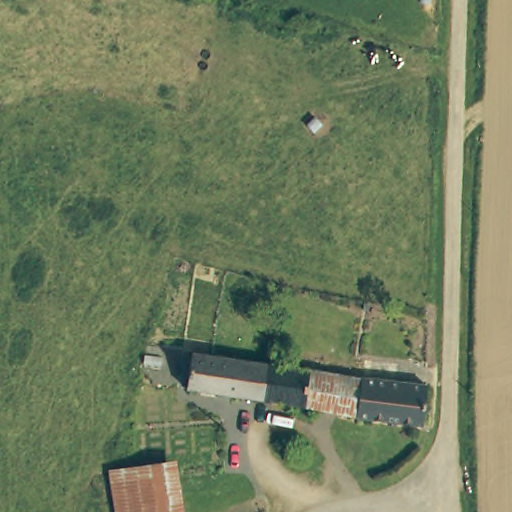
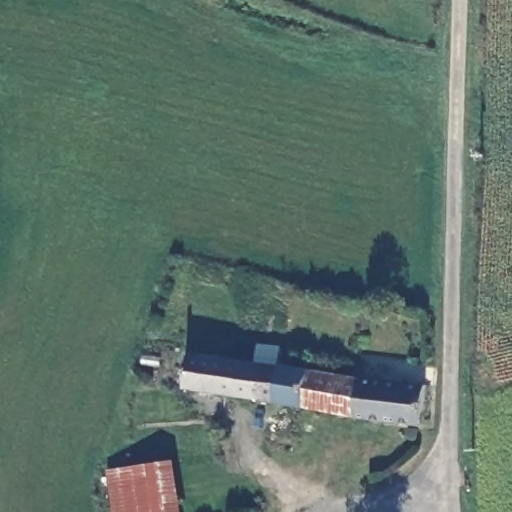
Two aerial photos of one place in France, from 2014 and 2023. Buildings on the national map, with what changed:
unchanged [(173,387),(178,350),(266,361),(260,400),(173,387)]
unchanged [(432,385),(428,425),(260,400),(266,361),(368,376),(401,381),(432,385)]
unchanged [(179,512),(120,512),(116,472),(170,464),(179,512)]

